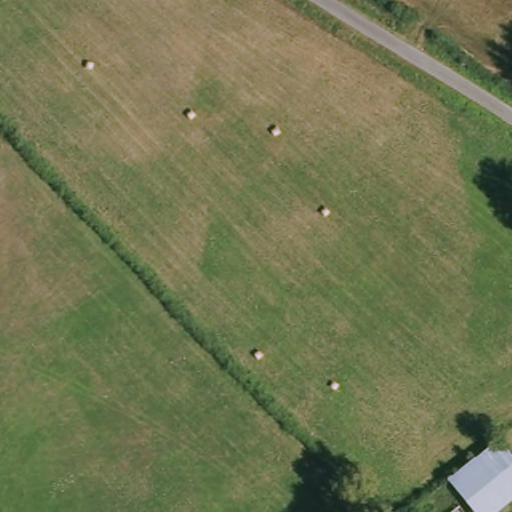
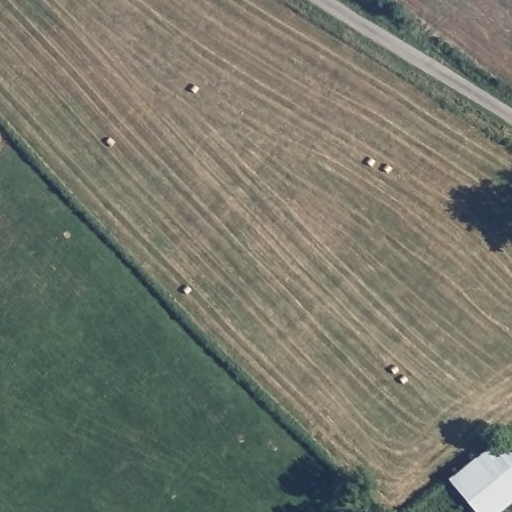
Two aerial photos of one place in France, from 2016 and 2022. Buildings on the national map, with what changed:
unchanged [(512,451),(512,503),(502,512),(477,512),(444,480),(499,436),(512,451)]

